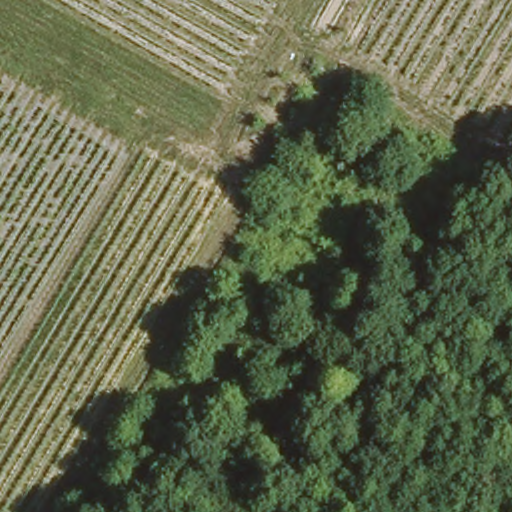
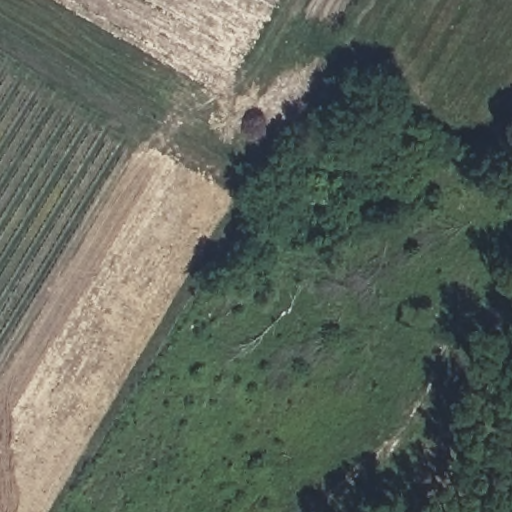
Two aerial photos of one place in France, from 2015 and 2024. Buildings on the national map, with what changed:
[]

